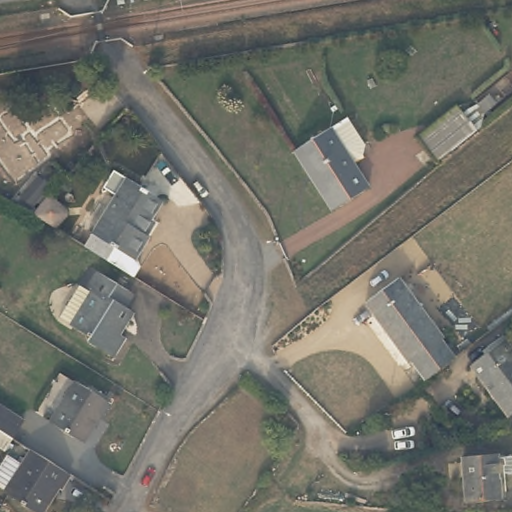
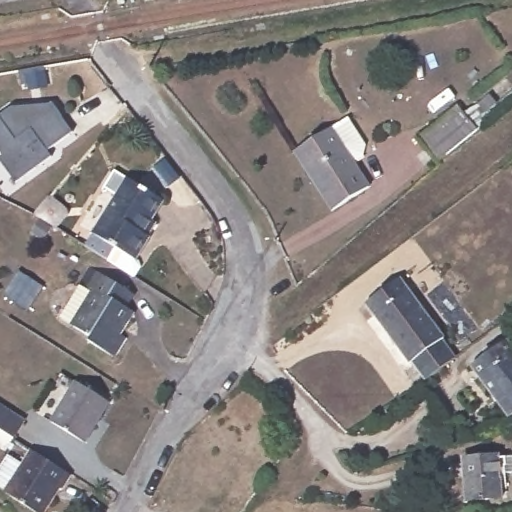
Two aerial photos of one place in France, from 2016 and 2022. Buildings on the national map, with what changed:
new [(54,102),(63,115),(62,115),(73,131),(47,149),(51,155),(15,181),(0,160),(0,114),(11,105),(54,102)]
unchanged [(482,128),(441,162),(420,136),(460,102),(482,128)]
unchanged [(365,143),(362,153),(350,161),(366,186),(330,210),(292,150),(346,115),(365,143)]
unchanged [(172,193),(150,224),(155,227),(141,250),(142,251),(144,253),(145,255),(138,267),(90,234),(136,168),(172,193)]
unchanged [(135,300),(127,311),(133,315),(119,336),(129,343),(115,364),(94,349),(96,343),(60,316),(80,288),(76,285),(90,268),(135,300)]
unchanged [(448,341),(445,343),(457,362),(426,382),(415,363),(410,366),(370,302),(406,277),(448,341)]
unchanged [(510,413),(476,361),(512,337),(512,412),(510,413)]
unchanged [(111,401),(85,439),(53,417),(80,379),(111,401)]
unchanged [(14,438),(0,429),(0,405),(25,422),(14,438)]
unchanged [(509,463),(496,465),(500,497),(467,500),(462,456),(507,450),(509,463)]
unchanged [(60,490),(58,488),(42,512),(31,512),(4,493),(32,451),(70,476),(60,490)]

